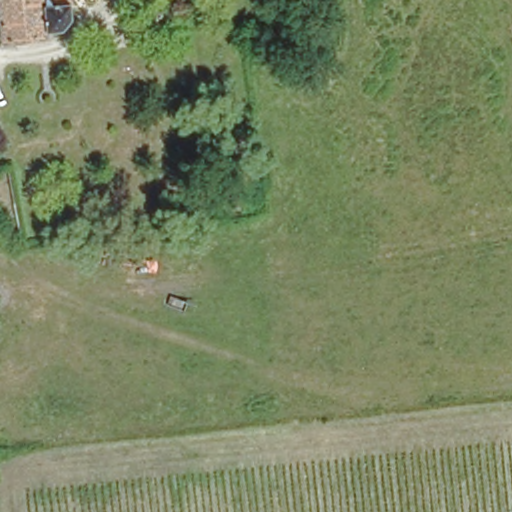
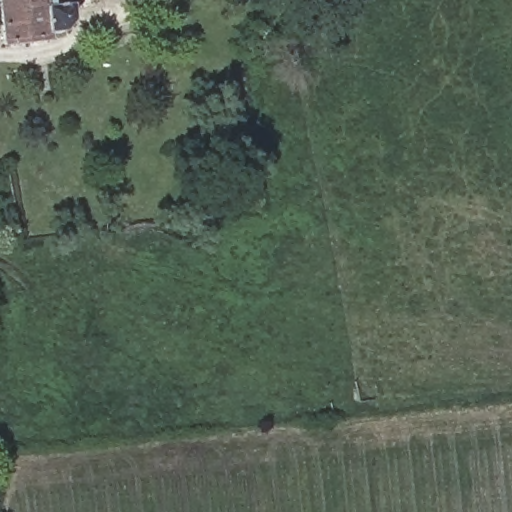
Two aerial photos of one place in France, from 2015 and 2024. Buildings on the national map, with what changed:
unchanged [(65,13),(56,25),(42,26),(43,33),(0,36),(0,0),(64,0),(65,13)]

